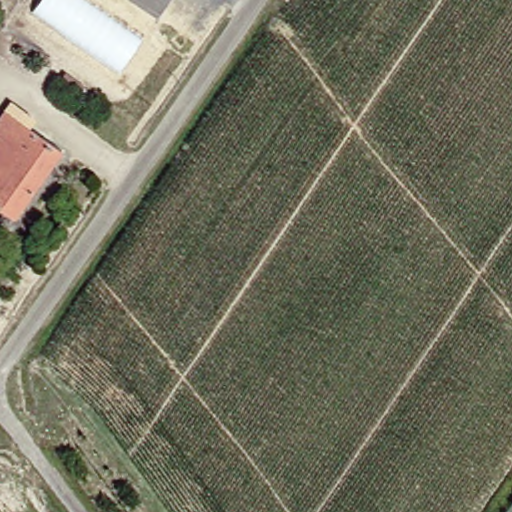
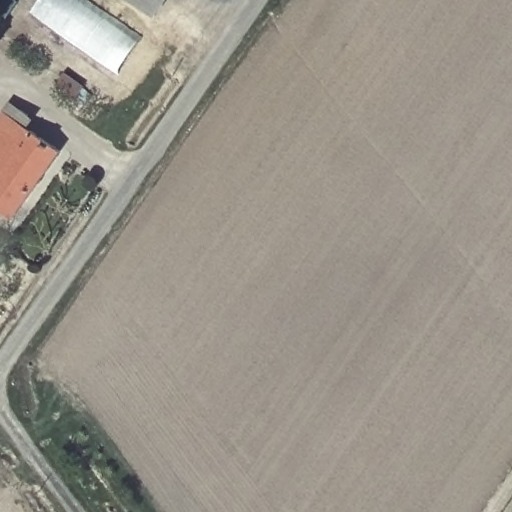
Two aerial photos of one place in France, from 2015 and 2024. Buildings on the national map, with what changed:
unchanged [(37,0),(95,0),(145,33),(122,68),(32,7),(37,0)]
unchanged [(142,0),(168,0),(159,12),(142,0)]
unchanged [(21,120),(58,146),(12,213),(0,204),(0,119),(13,101),(26,111),(21,120)]

